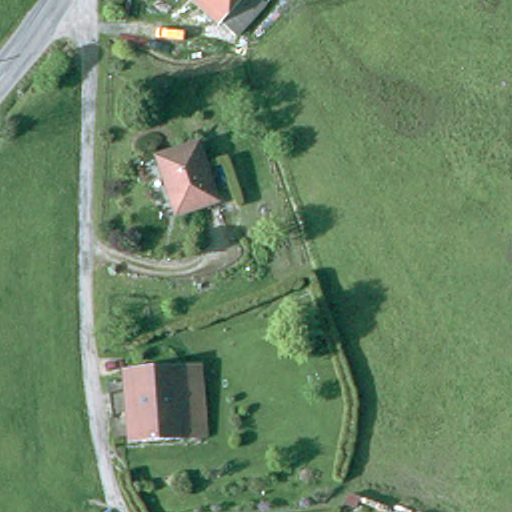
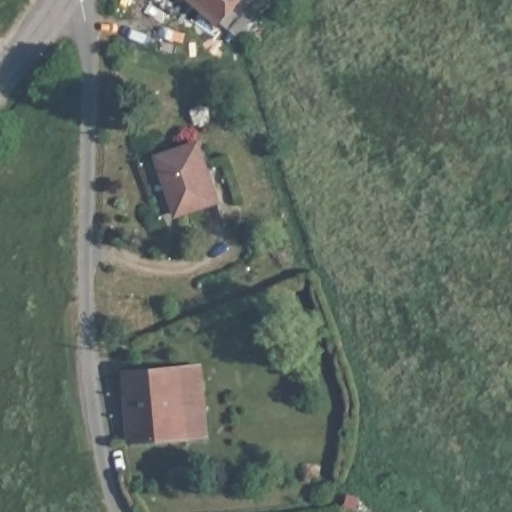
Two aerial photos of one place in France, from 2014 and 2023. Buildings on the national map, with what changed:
unchanged [(213,21),(190,0),(233,0),(213,21)]
unchanged [(215,194),(174,210),(153,155),(193,139),(215,194)]
unchanged [(197,367),(202,439),(183,439),(178,368),(197,367)]
unchanged [(161,440),(161,448),(151,448),(151,440),(127,441),(122,371),(178,368),(183,439),(161,440)]

